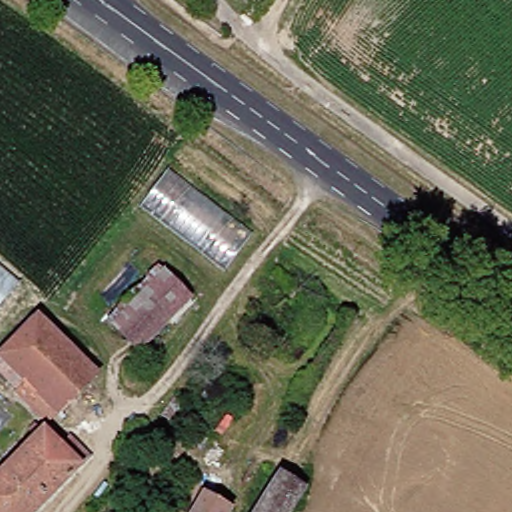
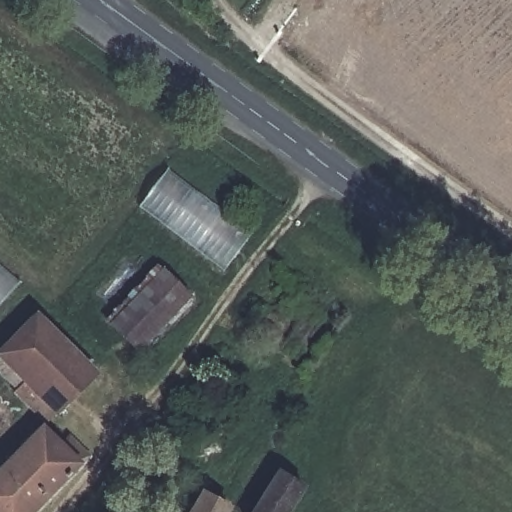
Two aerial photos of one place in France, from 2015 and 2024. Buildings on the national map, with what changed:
unchanged [(244,234),(213,270),(129,206),(155,167),(244,234)]
unchanged [(149,265),(176,288),(126,344),(99,320),(149,265)]
unchanged [(0,293),(0,275),(9,283),(0,293)]
unchanged [(0,338),(24,313),(82,369),(35,419),(0,387),(0,338)]
unchanged [(23,424),(29,429),(32,425),(52,444),(59,436),(79,455),(71,462),(25,512),(0,512),(0,460),(25,433),(19,428),(23,424)]
unchanged [(298,485),(280,512),(247,512),(277,470),(298,485)]
unchanged [(217,506),(214,512),(179,512),(190,491),(217,506)]

